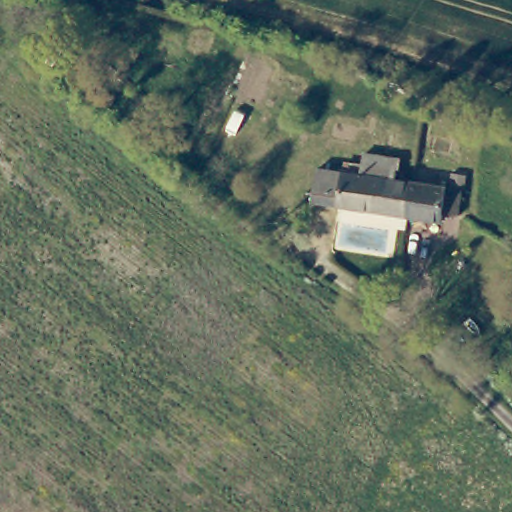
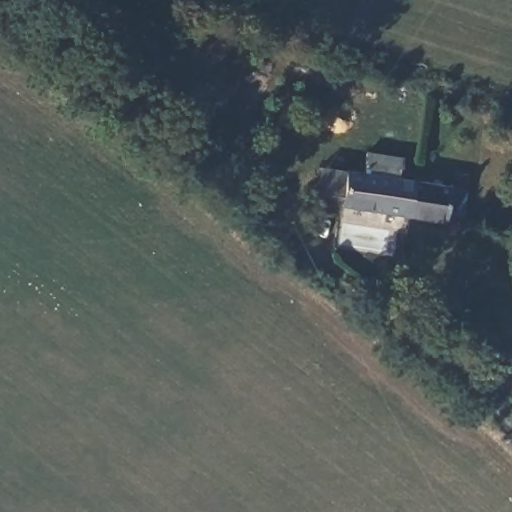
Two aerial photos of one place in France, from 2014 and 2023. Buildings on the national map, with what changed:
unchanged [(61,15),(71,0),(87,0),(74,22),(61,15)]
unchanged [(410,220),(315,206),(321,172),(365,178),(368,159),(402,164),(398,183),(418,186),(449,190),(445,225),(410,220)]

